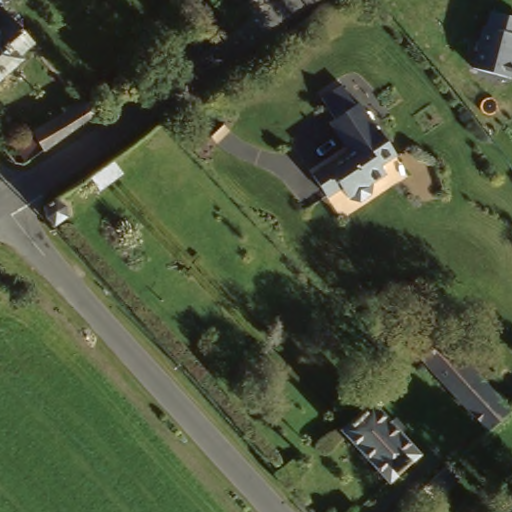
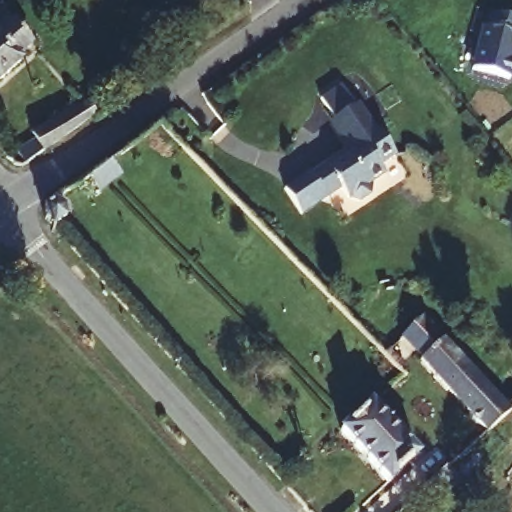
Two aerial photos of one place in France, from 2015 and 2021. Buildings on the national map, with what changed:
unchanged [(1,13),(13,26),(27,46),(4,63),(11,72),(0,80),(0,14),(1,13)]
unchanged [(473,71),(483,30),(486,30),(489,14),(512,19),(512,65),(508,78),(473,71)]
unchanged [(28,137),(26,128),(84,93),(98,112),(16,167),(4,151),(28,137)]
unchanged [(349,204),(348,202),(346,203),(339,193),(324,203),(311,184),(352,156),(319,110),(339,96),(353,115),(357,113),(376,140),(379,138),(394,161),(378,171),(383,178),(368,189),(369,191),(367,199),(358,205),(349,204)]
unchanged [(88,166),(101,155),(111,168),(91,184),(79,171),(88,166)]
unchanged [(44,230),(43,221),(45,217),(46,216),(50,212),(54,212),(59,213),(63,216),(64,221),(66,229),(54,240),(44,230)]
unchanged [(476,444),(421,357),(425,352),(404,330),(408,327),(400,319),(412,310),(418,316),(425,310),(434,321),(488,392),(504,418),(476,444)]
unchanged [(339,430),(349,419),(366,400),(410,462),(386,488),(339,430)]

